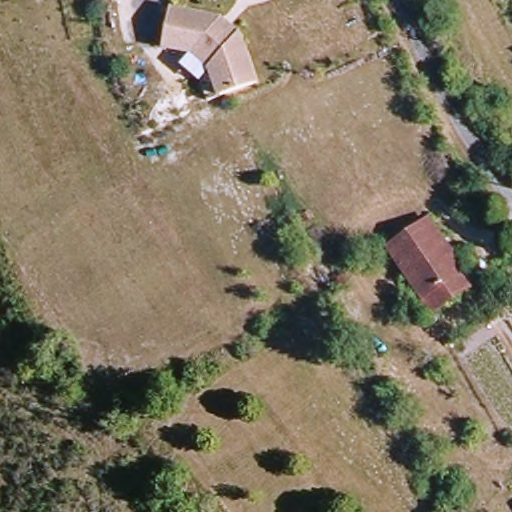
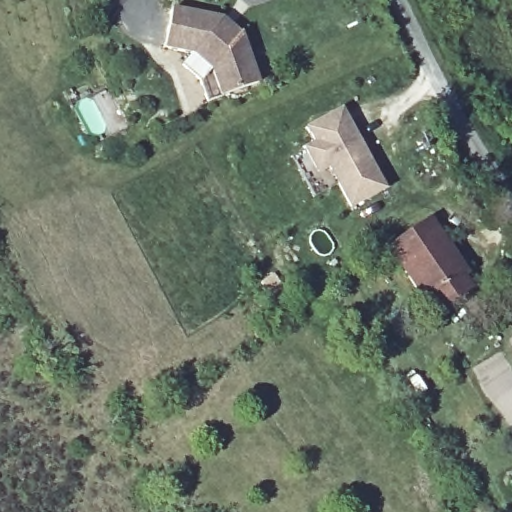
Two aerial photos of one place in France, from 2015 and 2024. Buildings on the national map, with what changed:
unchanged [(203,75),(186,61),(197,49),(167,44),(174,6),(223,15),(233,24),(242,31),(243,32),(259,76),(258,79),(225,91),(211,97),(207,88),(203,75)]
new [(327,168),(317,174),(304,149),(314,143),(306,127),(342,108),(386,190),(350,209),(327,168)]
unchanged [(436,223),(470,273),(466,278),(474,289),(438,314),(395,251),(436,223)]

